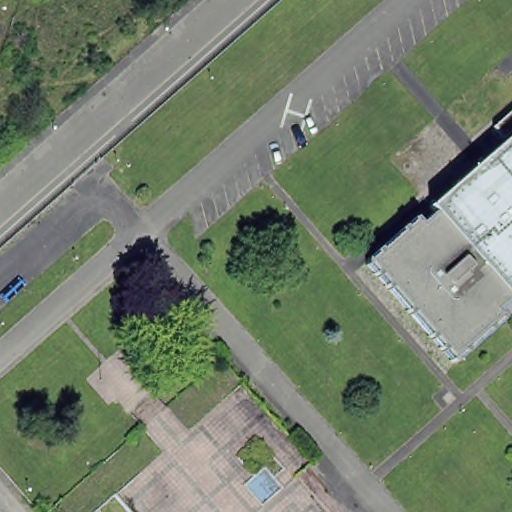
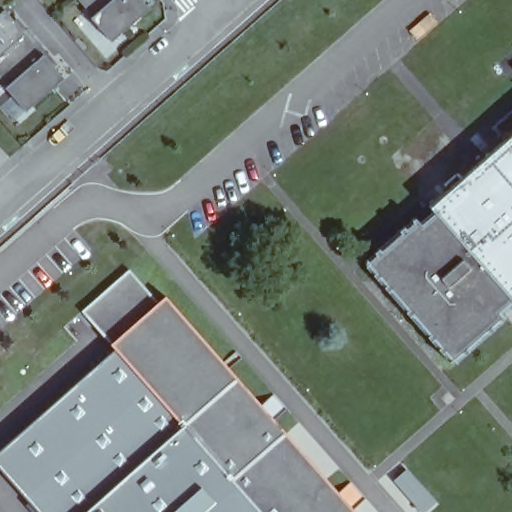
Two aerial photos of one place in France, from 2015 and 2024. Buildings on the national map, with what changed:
new [(150,9),(111,41),(90,18),(92,16),(78,0),(142,0),(150,9)]
new [(17,18),(57,64),(55,66),(65,77),(25,111),(5,87),(7,85),(0,77),(0,13),(5,9),(15,20),(17,18)]
unchanged [(368,264),(512,136),(512,309),(450,360),(368,264)]
new [(81,311),(131,271),(158,302),(167,293),(356,512),(258,512),(112,347),(81,311)]
new [(36,512),(0,471),(0,454),(112,347),(258,512),(36,512)]

